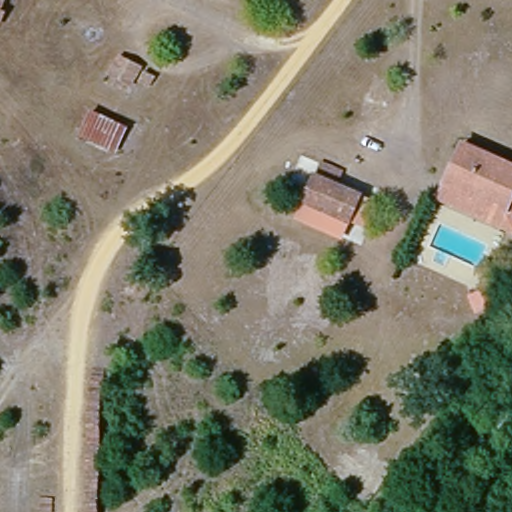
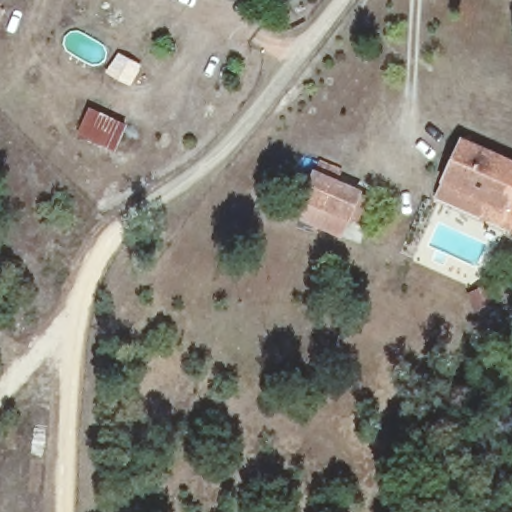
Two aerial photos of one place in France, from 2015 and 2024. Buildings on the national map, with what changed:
unchanged [(0,9),(0,0),(4,0),(0,9)]
unchanged [(120,156),(77,137),(90,109),(127,127),(128,123),(147,130),(132,161),(120,156)]
unchanged [(512,192),(503,211),(443,183),(461,144),(512,167),(512,192)]
unchanged [(347,221),(338,238),(297,218),(304,200),(242,171),(254,147),(317,175),(321,164),(343,174),(339,186),(358,195),(347,221)]

